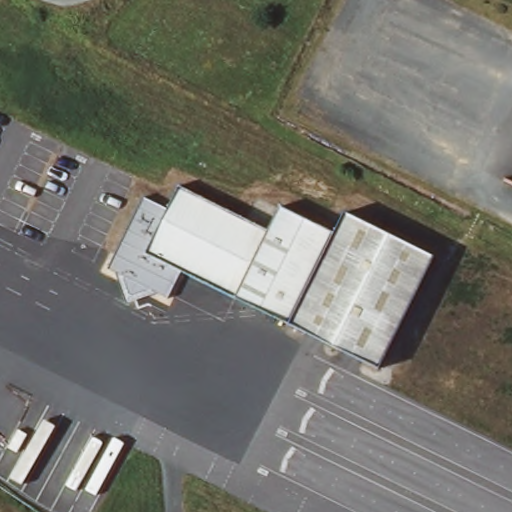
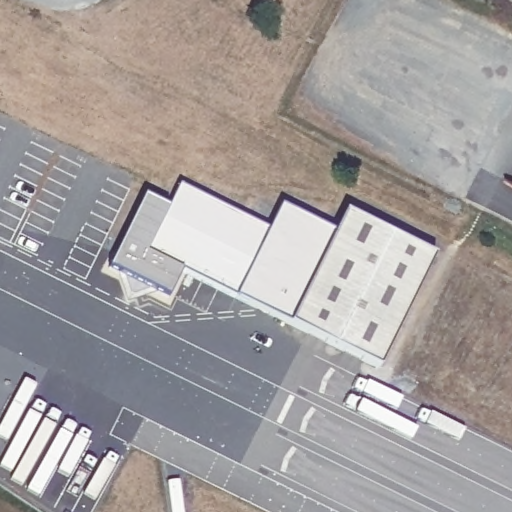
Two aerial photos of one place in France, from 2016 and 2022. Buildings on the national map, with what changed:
unchanged [(379,375),(182,277),(168,304),(149,295),(131,302),(124,282),(108,274),(144,202),(167,214),(179,191),(269,235),(280,211),(334,238),(344,218),(434,263),(379,375)]

